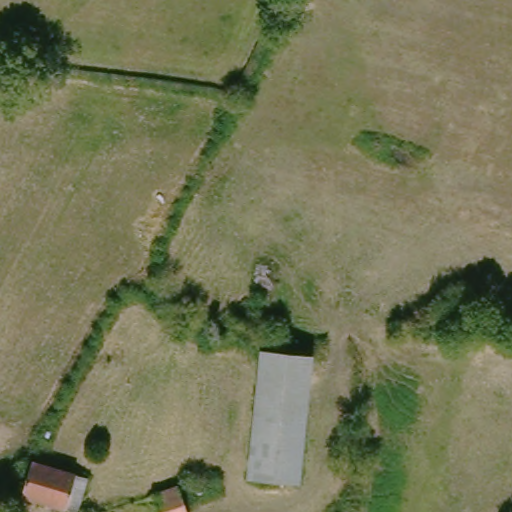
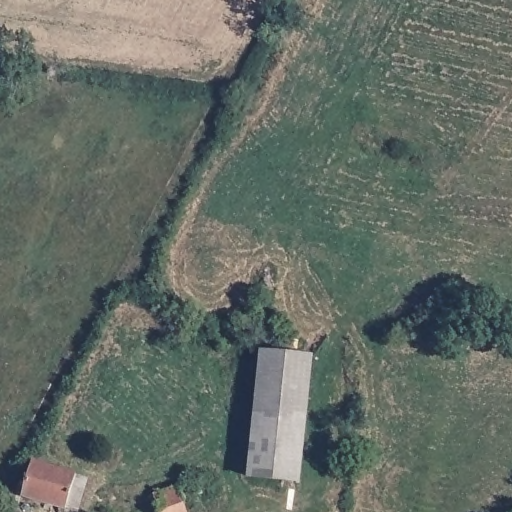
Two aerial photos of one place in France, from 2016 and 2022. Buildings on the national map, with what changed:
unchanged [(308,356),(292,480),(243,474),(257,350),(308,356)]
unchanged [(68,507),(53,503),(51,507),(13,497),(23,461),(76,474),(68,507)]
unchanged [(151,512),(143,492),(146,491),(168,484),(178,512),(151,512)]

